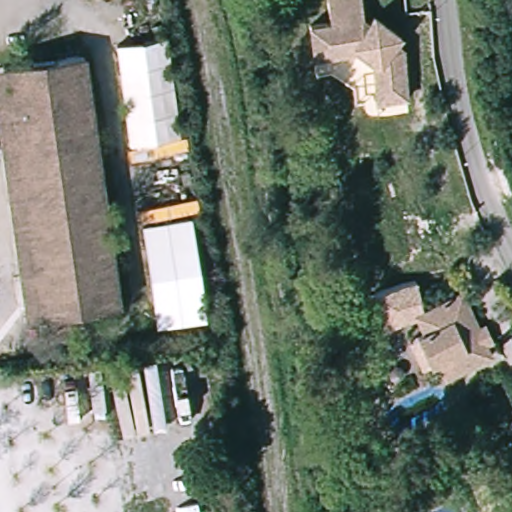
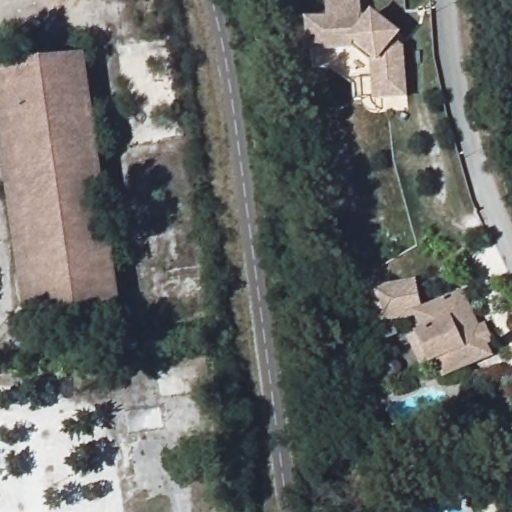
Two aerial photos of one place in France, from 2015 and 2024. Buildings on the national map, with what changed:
unchanged [(367,19),(372,11),(395,31),(392,38),(405,50),(412,97),(379,100),(375,70),(356,53),(313,57),(309,27),(326,25),(322,0),(359,0),(361,14),(367,19)]
unchanged [(181,140),(187,140),(187,151),(130,161),(128,150),(130,149),(117,45),(168,38),(181,140)]
unchanged [(82,311),(83,325),(40,331),(38,316),(31,317),(0,110),(0,72),(77,63),(113,308),(82,311)]
demolished [(209,321),(156,329),(142,226),(191,219),(209,321)]
unchanged [(381,322),(374,291),(415,280),(423,311),(414,316),(381,322)]
unchanged [(438,361),(425,369),(410,337),(422,330),(414,316),(467,291),(495,359),(446,380),(438,361)]

